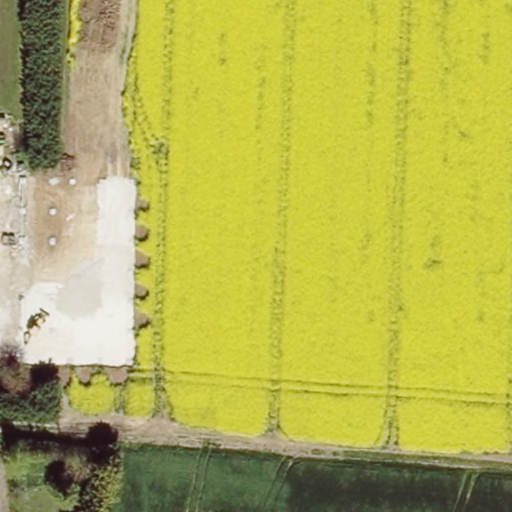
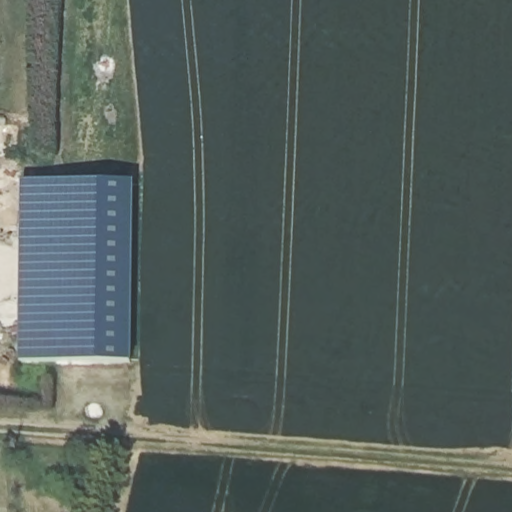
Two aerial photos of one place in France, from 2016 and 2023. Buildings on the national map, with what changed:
new [(21,176),(133,178),(129,359),(18,357),(21,176)]

